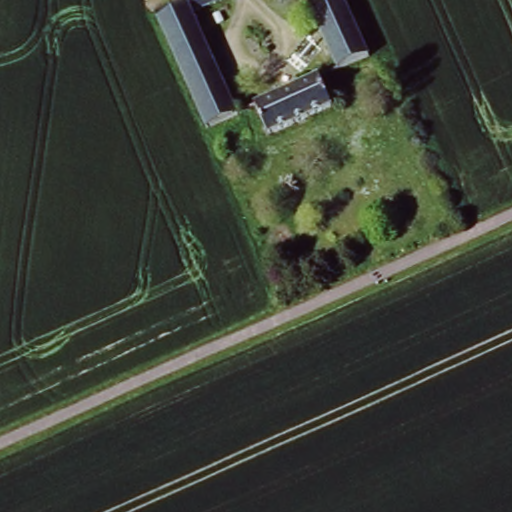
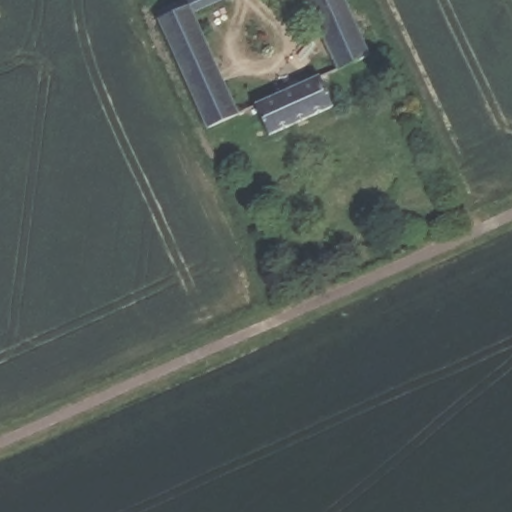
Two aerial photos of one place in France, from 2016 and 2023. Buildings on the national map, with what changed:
unchanged [(195,26),(240,126),(209,140),(157,23),(209,0),(233,0),(236,7),(195,26)]
unchanged [(313,0),(349,0),(377,63),(347,76),(313,0)]
unchanged [(332,106),(267,134),(254,103),(318,75),(332,106)]

